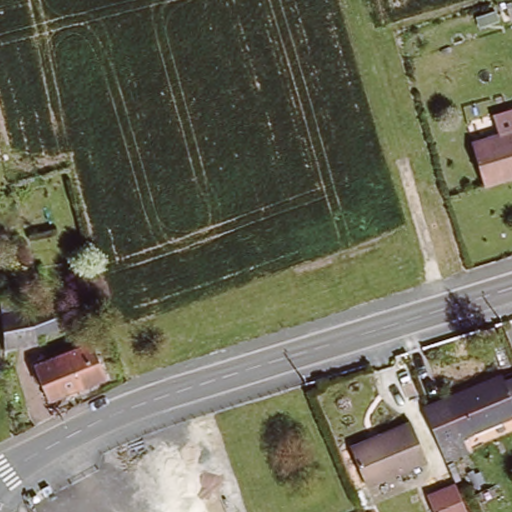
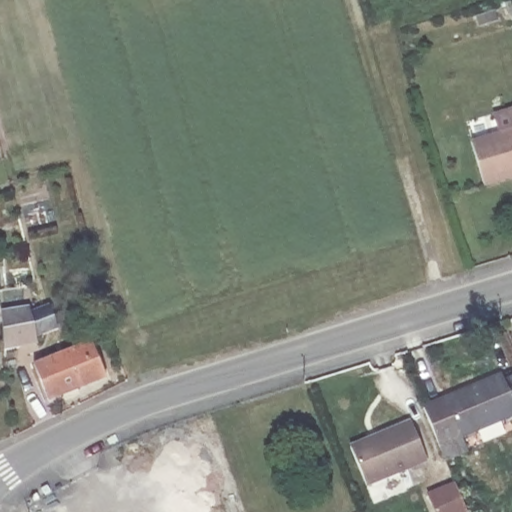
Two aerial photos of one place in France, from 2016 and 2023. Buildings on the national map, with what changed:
unchanged [(512,131),(512,179),(491,186),(477,142),(512,131)]
unchanged [(39,303),(53,297),(63,318),(43,327),(43,332),(6,339),(0,322),(0,300),(38,296),(39,303)]
unchanged [(103,376),(44,398),(33,361),(92,339),(103,376)]
unchanged [(512,396),(512,419),(438,448),(419,400),(501,368),(512,396)]
unchanged [(366,486),(350,446),(411,421),(427,461),(366,486)]
unchanged [(454,481),(467,512),(435,512),(427,494),(454,481)]

